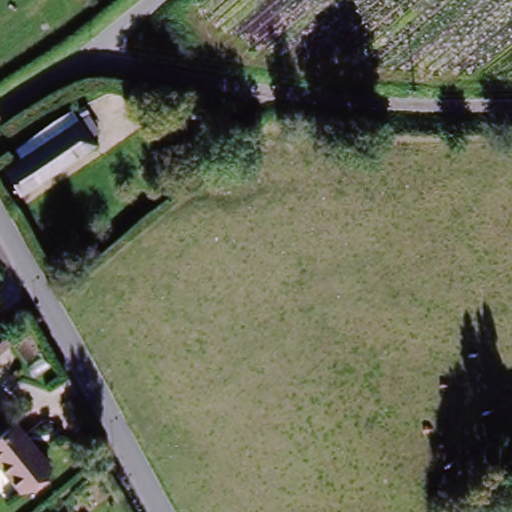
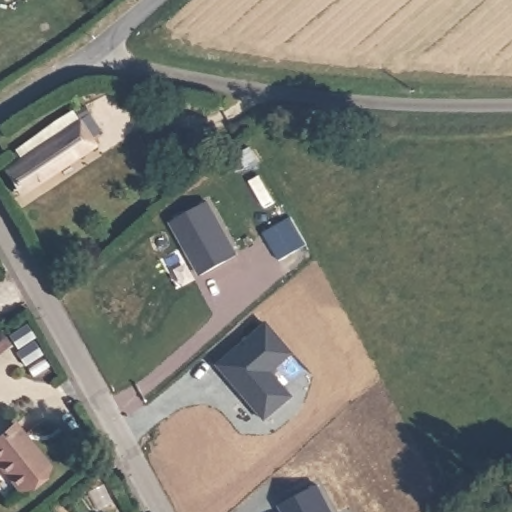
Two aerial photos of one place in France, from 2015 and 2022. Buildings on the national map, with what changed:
unchanged [(88,134),(76,143),(86,155),(25,203),(8,182),(13,179),(3,166),(38,139),(56,125),(66,136),(81,124),(88,134)]
new [(213,209),(241,262),(205,282),(176,229),(213,209)]
new [(299,223),(313,251),(284,265),(270,237),(299,223)]
new [(264,328),(289,358),(268,376),(289,400),(261,423),(243,401),(243,397),(229,381),(228,383),(216,369),(264,328)]
unchanged [(11,344),(0,354),(0,333),(11,344)]
unchanged [(0,465),(0,440),(15,426),(48,470),(21,493),(0,465)]
new [(327,512),(280,512),(278,507),(314,487),(327,512)]

